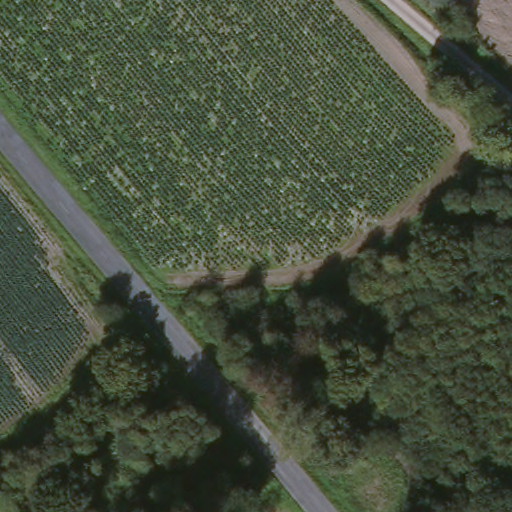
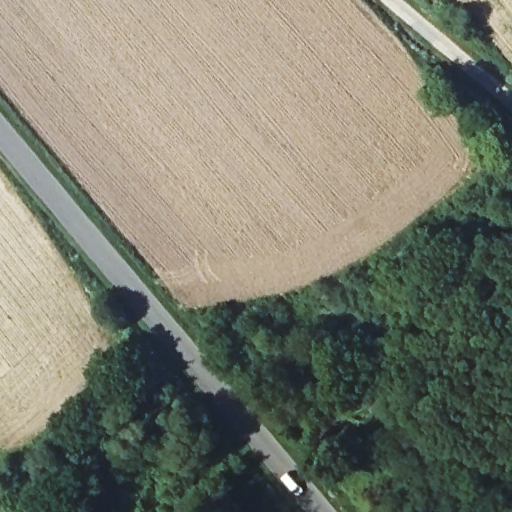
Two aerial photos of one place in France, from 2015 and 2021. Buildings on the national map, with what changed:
[]

